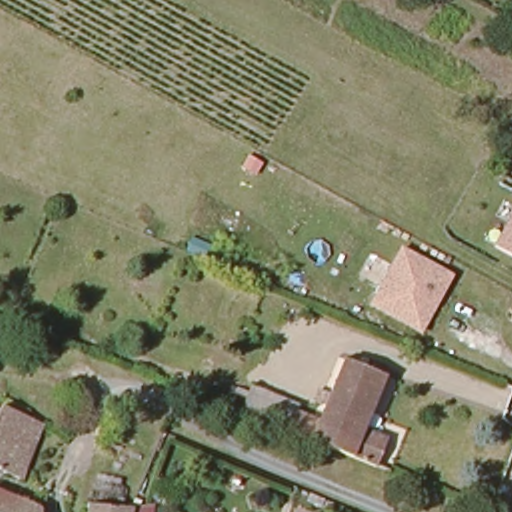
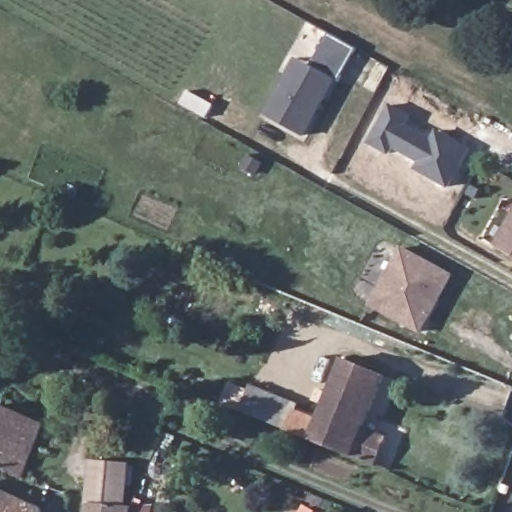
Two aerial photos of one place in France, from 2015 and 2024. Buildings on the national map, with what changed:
new [(328,34),(357,49),(339,82),(332,78),(330,81),(310,69),(328,34)]
new [(290,58),(330,81),(323,95),(299,136),(259,114),(283,72),(290,58)]
new [(449,188),(416,169),(419,163),(394,148),(391,156),(368,143),(392,102),(415,113),(410,123),(434,136),(437,130),(471,148),(449,188)]
unchanged [(498,246),(512,221),(512,255),(498,246)]
unchanged [(422,336),(367,306),(401,245),(454,274),(422,336)]
unchanged [(249,382),(299,402),(297,409),(318,416),(343,356),(386,375),(365,426),(388,435),(376,466),(352,455),(308,440),(239,409),(249,382)]
unchanged [(20,482),(11,477),(0,472),(0,397),(44,415),(20,482)]
new [(90,460),(130,463),(127,506),(134,507),(154,505),(153,512),(86,512),(86,504),(90,460)]
unchanged [(0,512),(0,491),(39,504),(39,512),(0,512)]
demolished [(85,512),(85,509),(72,507),(73,492),(143,504),(142,512),(85,512)]

